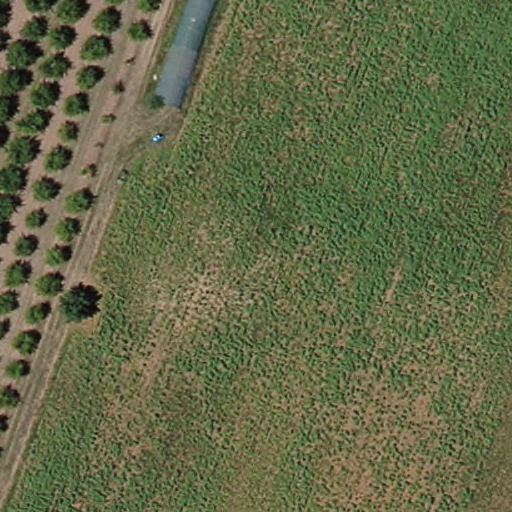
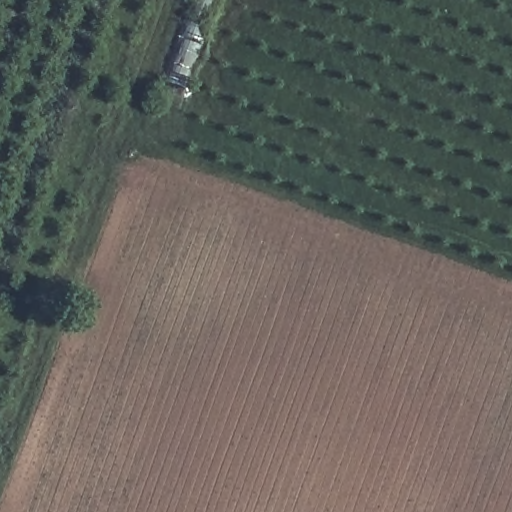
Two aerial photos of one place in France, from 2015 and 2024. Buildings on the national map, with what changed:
unchanged [(191,110),(171,102),(209,0),(228,0),(191,110)]

